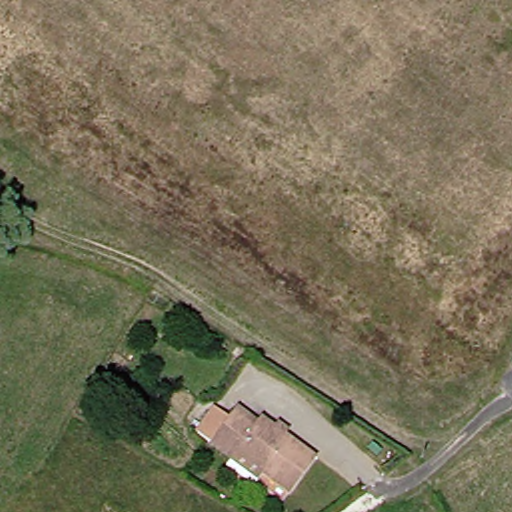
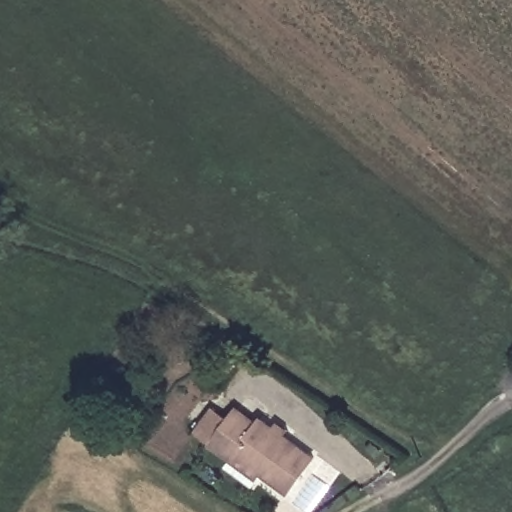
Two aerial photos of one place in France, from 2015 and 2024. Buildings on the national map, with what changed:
unchanged [(237,459),(200,432),(218,407),(234,419),(242,409),(262,423),(266,418),(279,428),(282,424),(292,431),(289,435),(320,457),(294,493),(267,473),(263,478),(237,459)]

